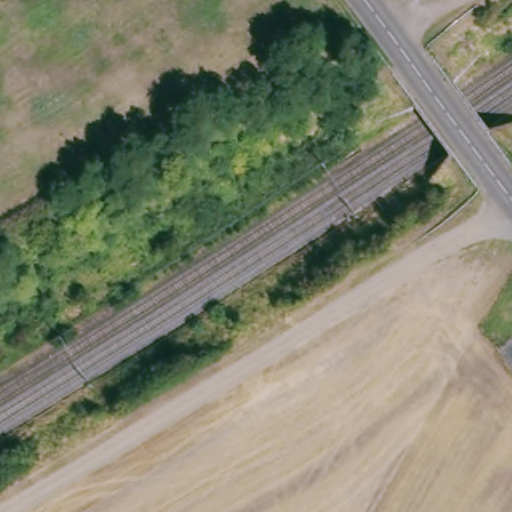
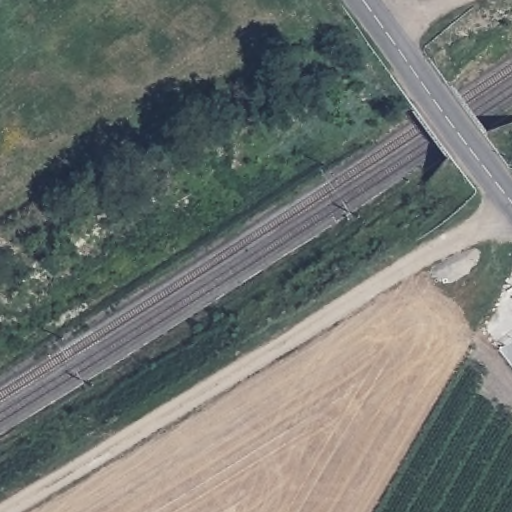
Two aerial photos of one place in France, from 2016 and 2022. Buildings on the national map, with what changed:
[]

